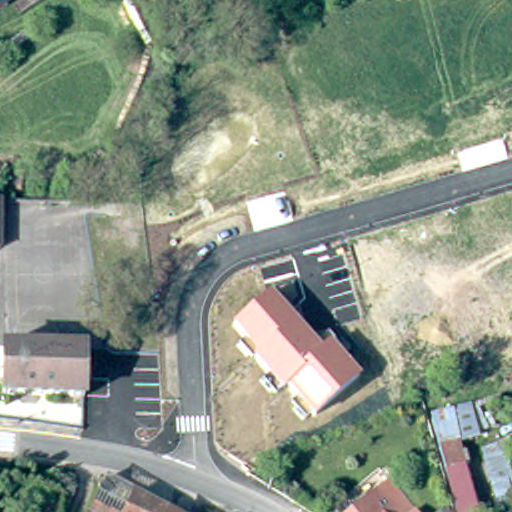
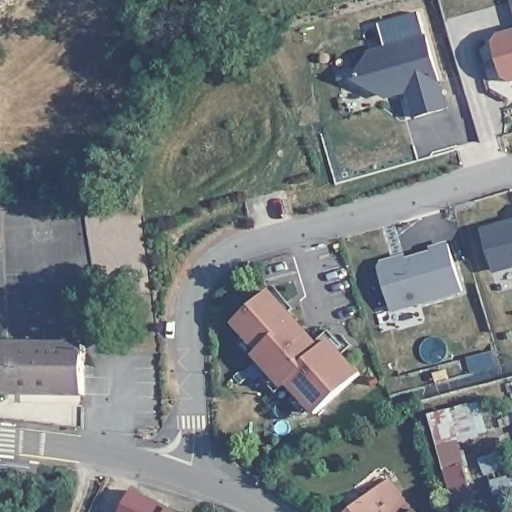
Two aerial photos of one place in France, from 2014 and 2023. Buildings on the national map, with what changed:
new [(512,0),(512,7),(510,0),(512,0)]
new [(493,41),(498,33),(512,29),(512,83),(505,85),(493,41)]
new [(411,119),(405,94),(385,100),(352,82),(366,51),(426,34),(449,109),(411,119)]
unchanged [(5,248),(0,248),(0,197),(6,197),(5,248)]
new [(512,268),(493,273),(481,228),(512,220),(512,268)]
new [(447,240),(462,292),(391,312),(377,263),(405,254),(406,258),(430,251),(428,246),(447,240)]
unchanged [(361,373),(316,414),(288,382),(282,387),(255,357),(258,353),(231,324),(269,291),(322,348),(330,340),(361,373)]
unchanged [(90,387),(11,386),(12,337),(91,337),(90,387)]
unchanged [(495,391),(503,432),(440,449),(433,415),(495,391)]
unchanged [(512,507),(495,511),(481,450),(505,442),(512,474),(512,507)]
unchanged [(458,447),(476,512),(460,512),(443,451),(458,447)]
unchanged [(392,473),(417,505),(423,512),(348,512),(346,510),(392,473)]
unchanged [(117,474),(193,512),(97,512),(110,488),(117,474)]
unchanged [(205,510),(205,512),(194,512),(198,505),(205,510)]
new [(205,510),(205,512),(194,512),(198,505),(205,510)]

